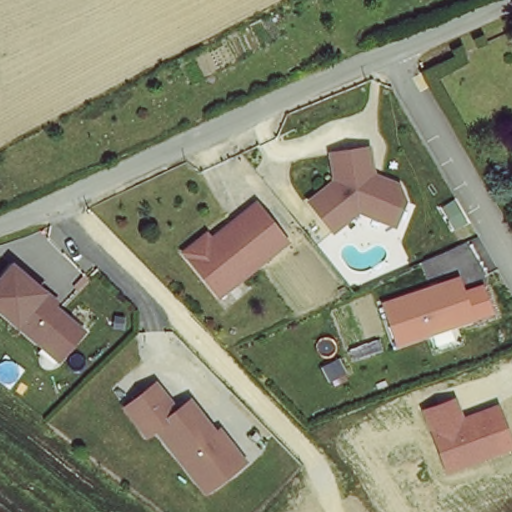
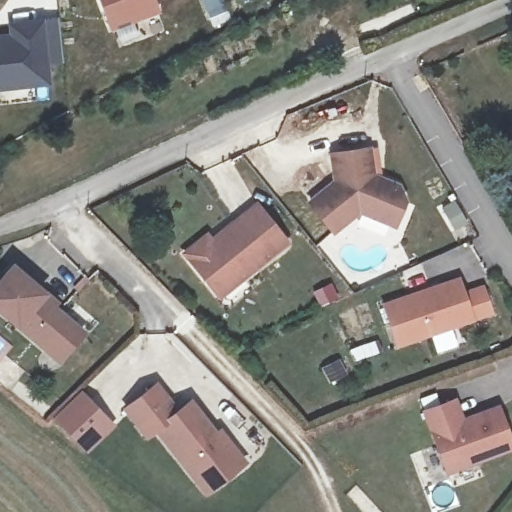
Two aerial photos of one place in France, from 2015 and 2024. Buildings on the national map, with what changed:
new [(160,6),(109,26),(99,0),(157,0),(160,6)]
new [(6,33),(6,14),(58,14),(59,59),(49,60),(49,81),(0,82),(0,33),(6,33)]
unchanged [(334,180),(330,153),(367,147),(371,174),(397,184),(403,200),(393,224),(358,209),(332,230),(308,201),(334,180)]
unchanged [(286,240),(218,295),(188,257),(183,251),(205,234),(210,239),(255,203),(286,240)]
unchanged [(42,344),(0,308),(0,274),(11,261),(42,288),(53,298),(50,302),(80,328),(66,345),(56,356),(42,344)]
unchanged [(461,274),(474,321),(396,350),(381,305),(461,274)]
unchanged [(195,478),(155,426),(146,433),(124,405),(154,382),(175,409),(188,399),(214,432),(218,429),(229,444),(242,461),(232,468),(216,481),(204,490),(195,478)]
new [(82,389),(117,425),(87,452),(53,417),(82,389)]
unchanged [(422,411),(457,399),(464,417),(500,404),(512,439),(512,450),(448,474),(422,411)]

